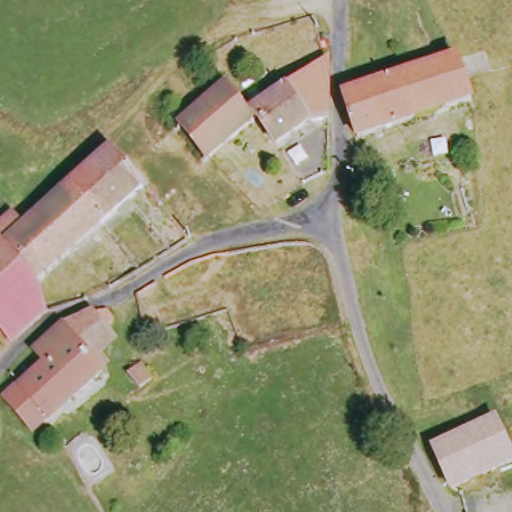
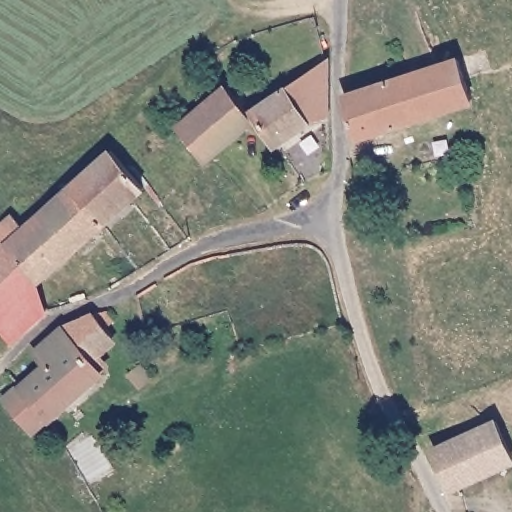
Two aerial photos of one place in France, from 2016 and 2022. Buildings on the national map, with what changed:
unchanged [(353,139),(343,95),(456,59),(470,101),(353,139)]
unchanged [(323,120),(300,124),(269,146),(248,112),(326,62),(323,120)]
unchanged [(200,105),(219,89),(240,116),(246,124),(205,159),(177,124),(182,120),(200,105)]
unchanged [(0,220),(1,219),(10,211),(23,226),(108,146),(137,186),(32,279),(40,308),(3,337),(0,333),(0,220)]
unchanged [(4,398),(21,385),(45,366),(33,351),(60,328),(105,312),(111,320),(106,328),(113,336),(88,359),(100,374),(47,419),(31,432),(4,398)]
unchanged [(156,380),(143,390),(131,375),(144,365),(156,380)]
unchanged [(444,489),(426,451),(489,423),(507,461),(444,489)]

